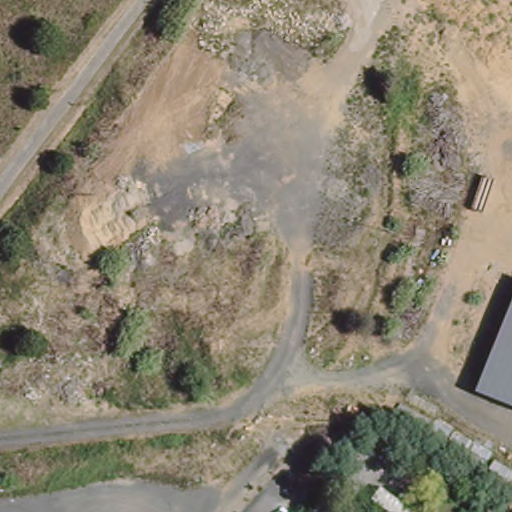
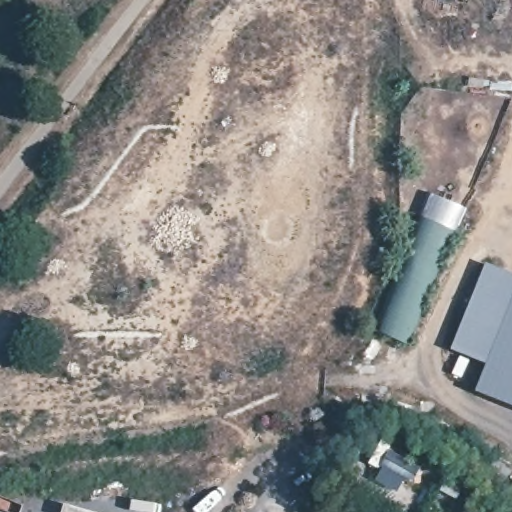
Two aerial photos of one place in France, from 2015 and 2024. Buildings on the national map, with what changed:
new [(375,331),(428,195),(463,208),(409,344),(375,331)]
new [(485,264),(512,274),(512,295),(485,364),(450,349),(485,264)]
unchanged [(512,295),(512,407),(475,391),(512,295)]
unchanged [(410,483),(382,466),(389,451),(418,468),(410,483)]
demolished [(376,480),(410,509),(408,512),(389,512),(369,492),(376,480)]

